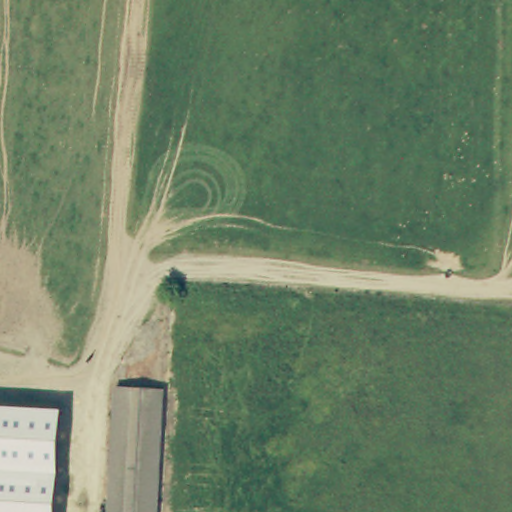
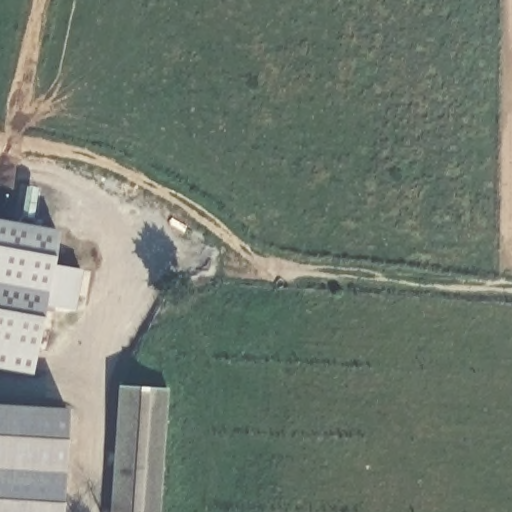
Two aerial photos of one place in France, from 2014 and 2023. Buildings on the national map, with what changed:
new [(57,232),(50,265),(81,270),(73,310),(42,305),(34,372),(0,365),(0,221),(57,232)]
unchanged [(158,512),(112,512),(113,493),(117,389),(164,390),(158,512)]
unchanged [(60,512),(0,512),(0,406),(65,410),(60,512)]

